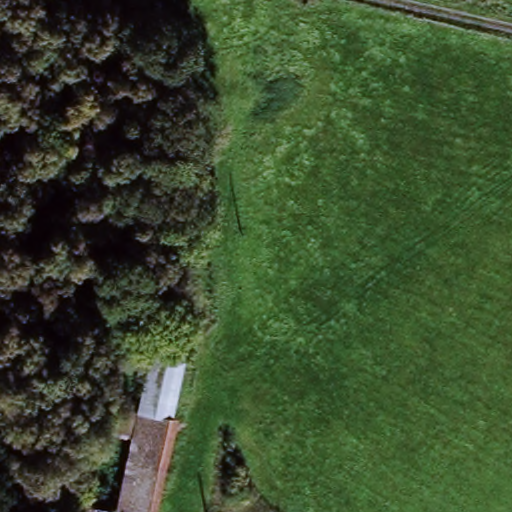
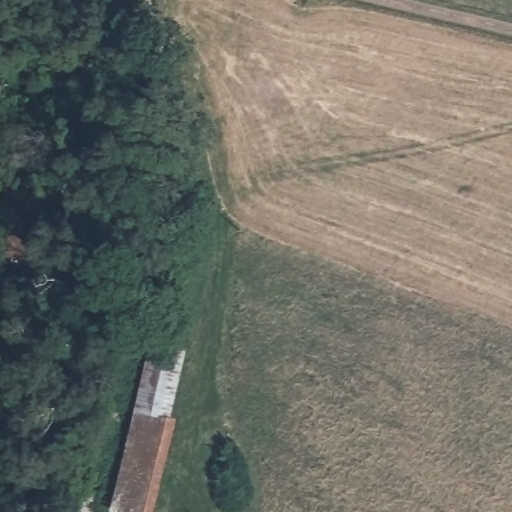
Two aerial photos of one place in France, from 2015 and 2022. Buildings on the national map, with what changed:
unchanged [(129,423),(145,353),(184,361),(154,512),(76,512),(94,416),(129,423)]

